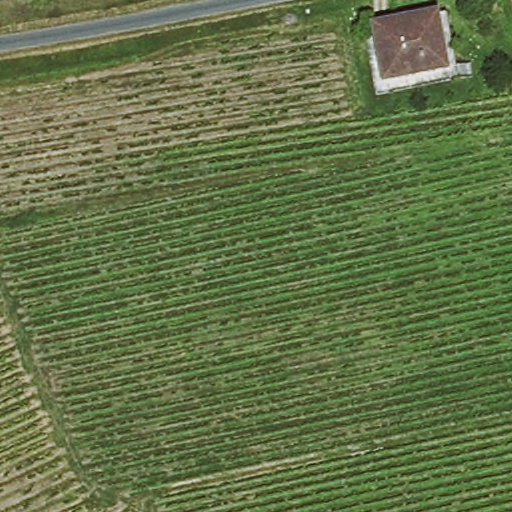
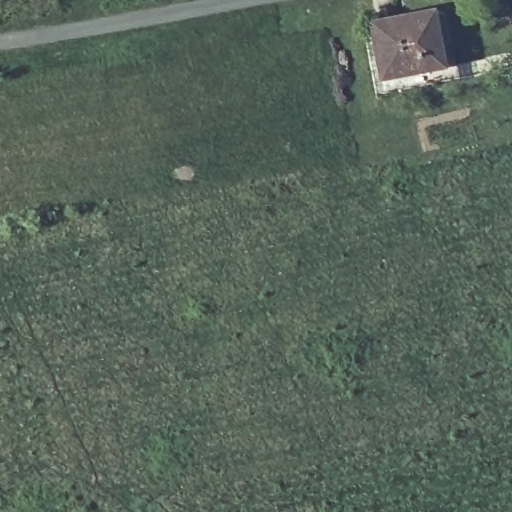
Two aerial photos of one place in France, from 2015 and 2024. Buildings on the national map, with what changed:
unchanged [(363,30),(426,20),(439,19),(447,72),(432,75),(370,84),(363,30)]

